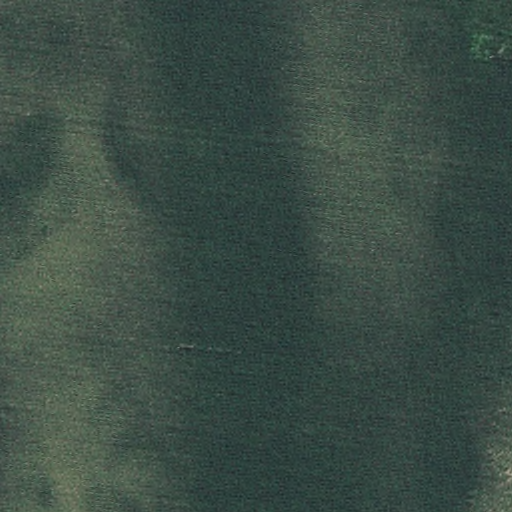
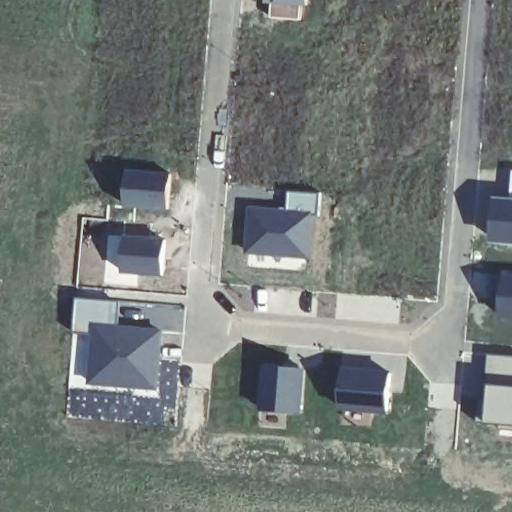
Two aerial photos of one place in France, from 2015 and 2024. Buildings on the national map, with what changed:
new [(263,0),(306,0),(304,20),(271,17),(271,2),(263,2),(263,0)]
new [(124,167),(172,171),(168,210),(122,205),(124,167)]
new [(512,197),(510,196),(512,175),(512,197)]
new [(286,207),(288,189),(322,192),(317,215),(311,258),(243,252),(246,204),(286,207)]
new [(510,196),(512,197),(512,243),(491,241),(492,195),(510,196)]
new [(163,276),(121,272),(109,270),(108,275),(105,275),(108,233),(124,233),(166,237),(163,276)]
new [(512,271),(512,320),(494,318),(501,269),(512,271)]
new [(77,296),(120,300),(119,323),(90,321),(89,333),(74,331),(77,296)]
new [(74,331),(89,333),(90,321),(119,323),(164,328),(159,392),(82,386),(83,377),(71,376),(74,331)]
new [(512,355),(512,427),(487,423),(488,353),(512,355)]
new [(260,363),(306,367),(301,412),(256,408),(260,363)]
new [(341,364),(393,368),(388,413),(338,407),(341,364)]

